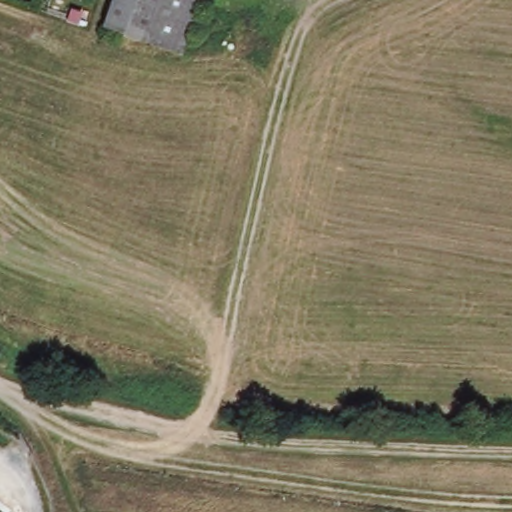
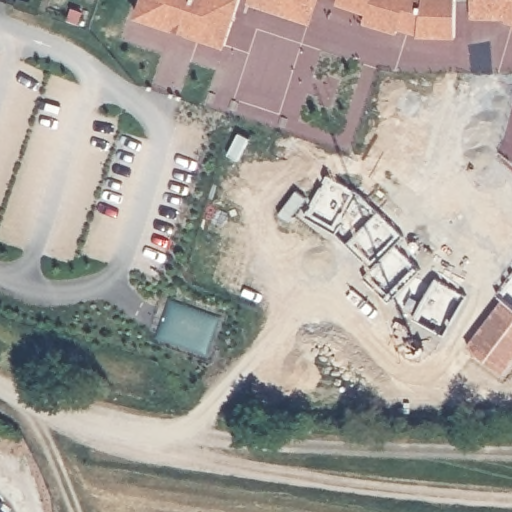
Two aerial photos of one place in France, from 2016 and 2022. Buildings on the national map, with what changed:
new [(141,0),(240,0),(224,48),(135,17),(141,0)]
new [(246,4),(247,0),(317,0),(309,25),(246,4)]
new [(396,30),(395,33),(363,23),(365,13),(335,3),(336,0),(458,0),(457,35),(416,36),(396,30)]
new [(506,22),(501,18),(471,16),(471,0),(512,0),(512,24),(506,22)]
unchanged [(0,511),(2,512),(0,512),(0,511)]

